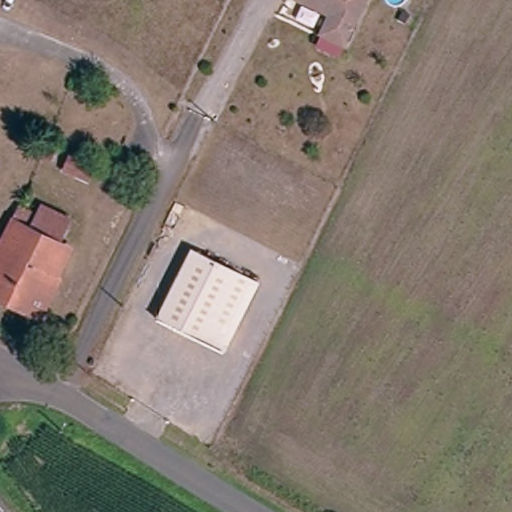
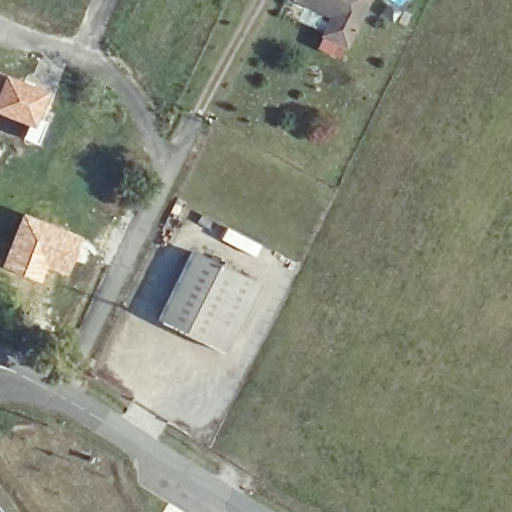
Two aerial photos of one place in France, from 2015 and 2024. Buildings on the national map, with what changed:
unchanged [(345,50),(344,49),(337,61),(320,52),(327,40),(325,38),(335,20),(298,0),(373,0),(345,50)]
new [(29,126),(0,113),(0,71),(45,88),(29,126)]
unchanged [(84,141),(71,168),(46,156),(59,129),(84,141)]
unchanged [(21,220),(37,229),(43,220),(75,239),(65,256),(74,263),(34,334),(0,314),(0,260),(16,233),(21,220)]
unchanged [(236,330),(223,355),(161,318),(196,252),(241,278),(257,287),(236,330)]

